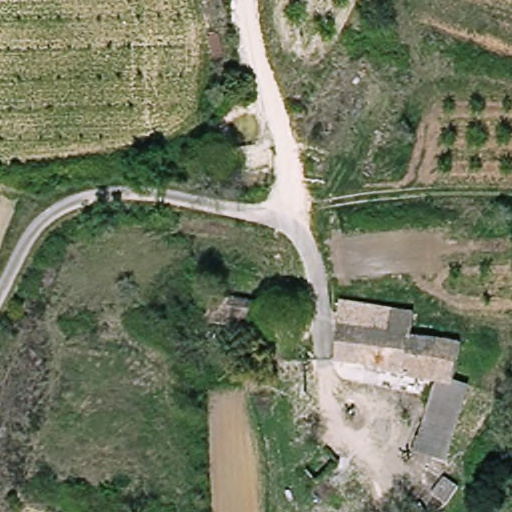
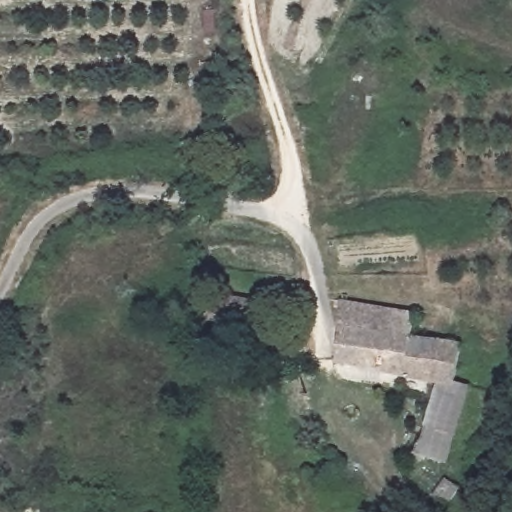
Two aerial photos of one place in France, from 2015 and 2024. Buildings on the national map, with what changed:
unchanged [(263,305),(261,321),(222,316),(220,326),(202,324),(206,298),(263,305)]
unchanged [(431,461),(409,454),(415,437),(432,384),(331,366),(341,305),(378,310),(415,315),(412,340),(463,346),(455,384),(467,388),(452,440),(443,465),(431,461)]
unchanged [(461,490),(452,509),(437,502),(447,481),(461,490)]

